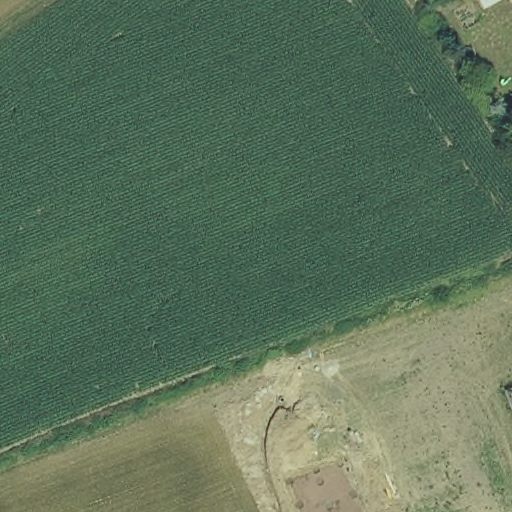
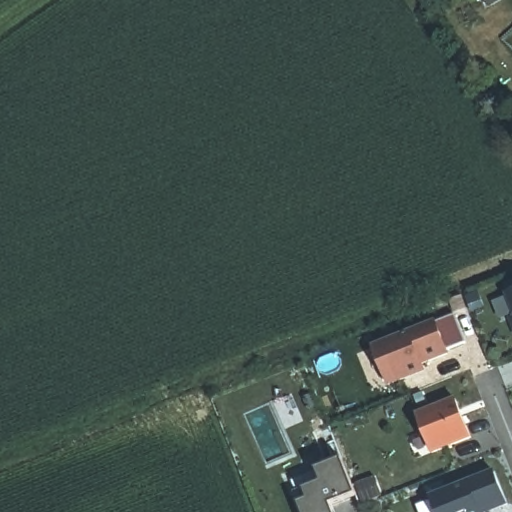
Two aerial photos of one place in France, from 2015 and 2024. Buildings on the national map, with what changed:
new [(473,311),(469,301),(467,296),(479,292),(481,296),(485,306),(473,311)]
new [(509,293),(512,292),(512,301),(509,293)]
new [(437,320),(438,322),(455,315),(467,342),(449,350),(451,355),(424,366),(427,372),(387,386),(372,346),(437,320)]
new [(456,397),(472,438),(432,455),(417,413),(456,397)]
new [(290,480),(342,458),(357,495),(332,504),(335,512),(302,512),(290,480)]
new [(470,482),(495,472),(507,504),(487,512),(437,512),(431,497),(470,482)]

